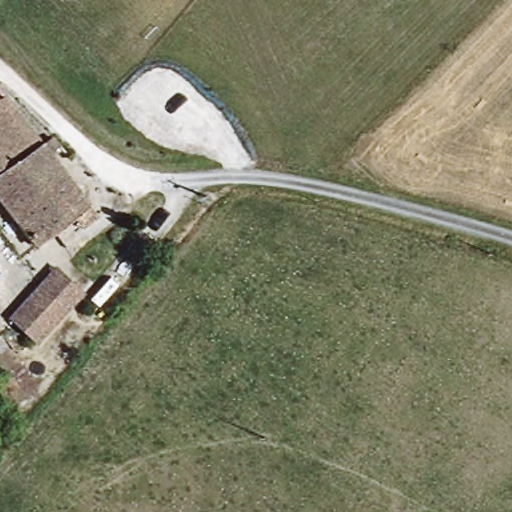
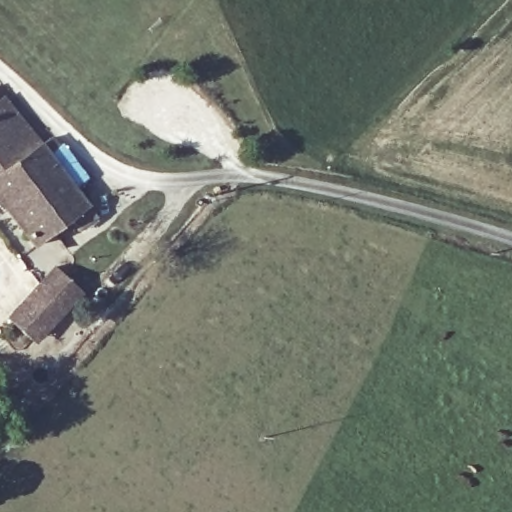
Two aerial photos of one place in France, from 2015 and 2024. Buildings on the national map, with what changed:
unchanged [(88,204),(32,245),(0,202),(0,95),(3,93),(42,141),(51,135),(57,144),(48,150),(88,204)]
unchanged [(6,315),(25,298),(57,267),(82,293),(59,315),(54,311),(45,319),(26,337),(6,315)]

